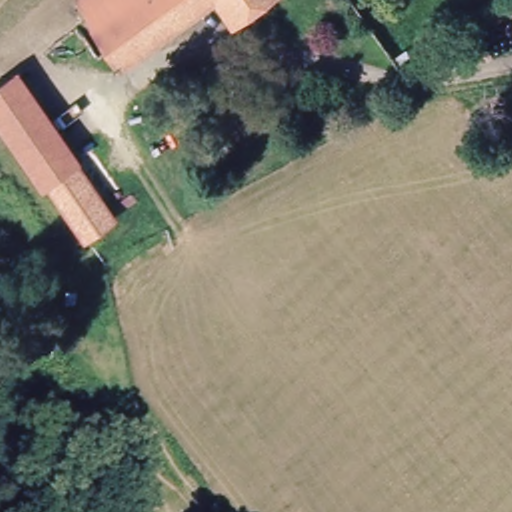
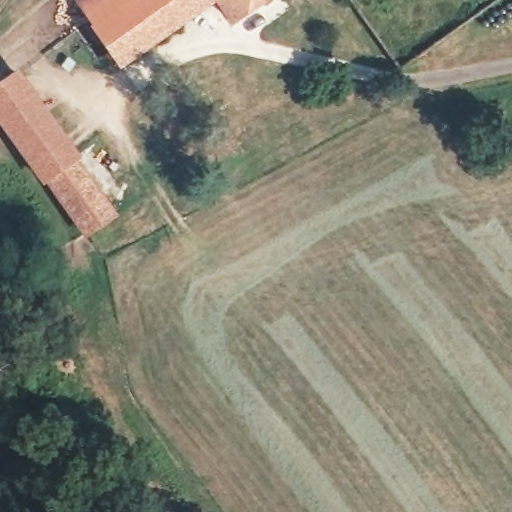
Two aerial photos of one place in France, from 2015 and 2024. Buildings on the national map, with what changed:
unchanged [(97,30),(100,27),(82,0),(217,0),(122,66),(97,30)]
unchanged [(217,0),(265,0),(233,22),(217,0)]
unchanged [(0,83),(20,69),(78,150),(77,156),(42,180),(0,125),(0,83)]
unchanged [(42,180),(77,156),(120,218),(87,241),(42,180)]

